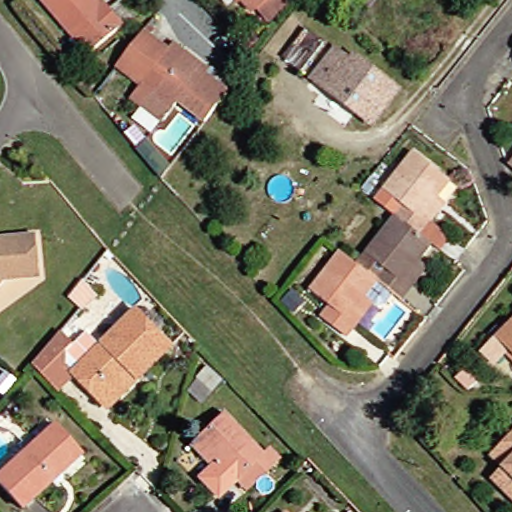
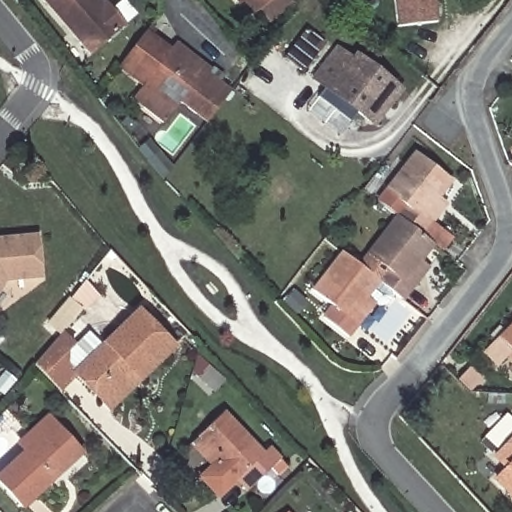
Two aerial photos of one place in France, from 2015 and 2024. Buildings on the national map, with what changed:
unchanged [(91,56),(42,0),(97,0),(102,6),(107,2),(114,10),(127,26),(91,56)]
unchanged [(257,12),(246,0),(271,0),(257,12)]
new [(438,22),(397,28),(394,0),(435,0),(438,22)]
unchanged [(292,30),(285,40),(279,35),(286,25),(292,30)]
unchanged [(215,119),(189,97),(183,103),(151,77),(130,60),(155,28),(176,45),(181,38),(197,50),(218,66),(215,70),(239,88),(215,119)]
unchanged [(326,42),(330,39),(353,59),(358,54),(402,89),(375,125),(288,54),(307,28),(326,42)]
unchanged [(271,44),(277,50),(270,60),(262,54),(271,44)]
unchanged [(439,219),(425,238),(396,216),(405,206),(390,194),(422,152),(456,180),(441,199),(450,206),(439,219)]
unchanged [(420,281),(404,301),(381,284),(391,271),(367,251),(396,216),(425,238),(435,246),(423,261),(430,268),(420,281)]
unchanged [(4,239),(42,235),(46,273),(47,277),(45,277),(11,280),(0,294),(0,239),(4,239)]
unchanged [(351,338),(328,319),(335,309),(312,290),(342,254),(381,284),(369,299),(377,306),(365,321),(351,338)]
unchanged [(73,296),(85,282),(99,292),(85,311),(70,300),(73,296)]
unchanged [(85,375),(81,370),(106,346),(146,308),(181,346),(149,377),(116,407),(110,400),(85,375)]
unchanged [(512,324),(512,346),(501,335),(512,324)]
unchanged [(69,331),(82,342),(93,333),(106,346),(81,370),(85,375),(66,391),(37,362),(69,331)]
unchanged [(236,480),(230,485),(190,443),(197,437),(226,410),(263,451),(270,445),(280,457),(252,485),(246,490),(236,480)]
unchanged [(55,421),(82,452),(25,505),(0,478),(0,473),(55,421)]
unchanged [(512,439),(512,493),(508,490),(498,479),(509,467),(496,455),(512,439)]

